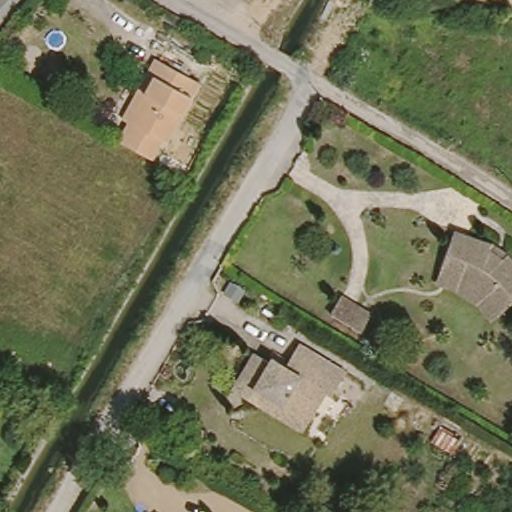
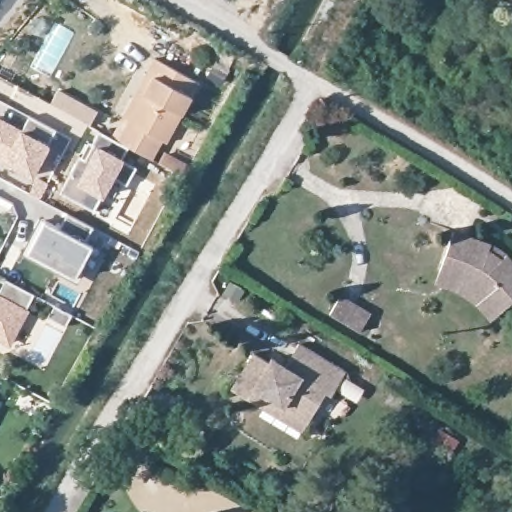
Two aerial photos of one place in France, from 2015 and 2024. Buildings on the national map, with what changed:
unchanged [(196,84),(163,142),(157,141),(148,158),(115,140),(125,122),(117,118),(142,73),(150,57),(196,84)]
new [(22,131),(30,117),(55,130),(49,145),(32,179),(0,160),(0,120),(22,131)]
new [(115,140),(126,146),(120,156),(123,159),(136,166),(126,184),(114,178),(103,198),(100,197),(94,210),(60,192),(80,155),(81,156),(88,143),(92,144),(99,131),(115,140)]
new [(77,284),(21,255),(41,219),(60,229),(68,215),(93,227),(85,243),(90,246),(83,259),(89,263),(77,284)]
unchanged [(435,280),(440,266),(450,229),(490,240),(485,247),(499,258),(506,252),(512,258),(512,296),(498,308),(489,316),(465,292),(435,280)]
new [(0,342),(0,293),(6,280),(31,294),(25,309),(28,311),(10,347),(0,342)]
unchanged [(362,331),(330,313),(340,296),(371,314),(362,331)]
unchanged [(249,356),(280,373),(296,344),(341,369),(326,393),(322,391),(305,419),(258,391),(253,397),(233,384),(249,356)]
unchanged [(299,432),(228,391),(233,384),(253,397),(258,391),(305,419),(299,432)]

